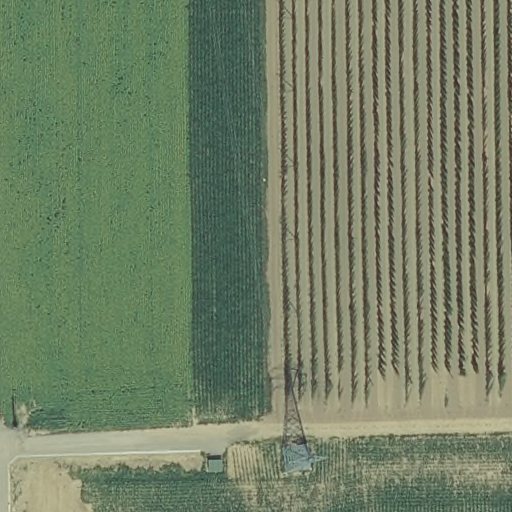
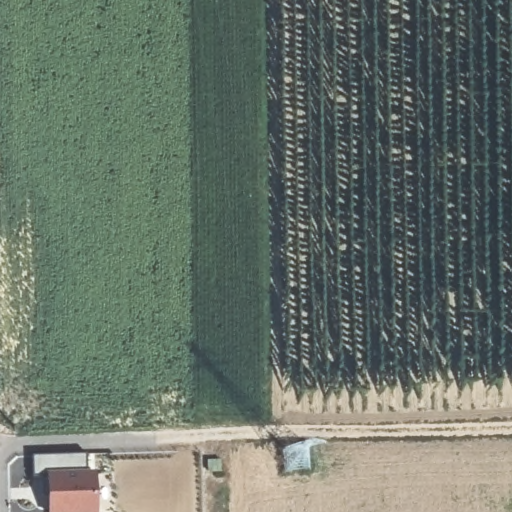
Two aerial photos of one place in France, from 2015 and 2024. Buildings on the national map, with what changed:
new [(87,470),(98,471),(98,512),(48,512),(46,478),(33,478),(34,455),(87,454),(87,470)]

